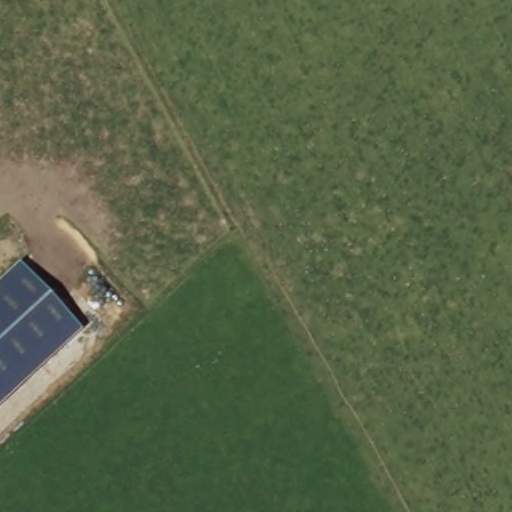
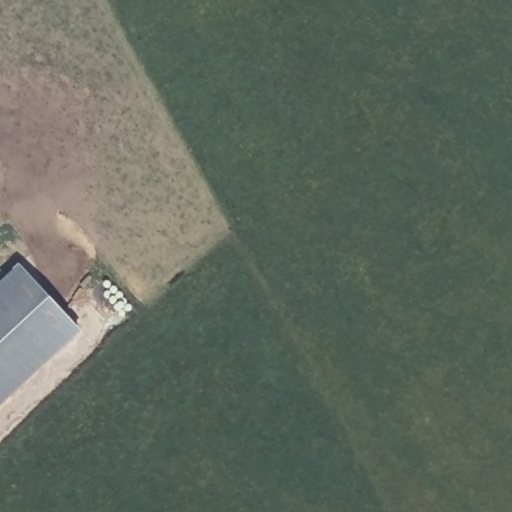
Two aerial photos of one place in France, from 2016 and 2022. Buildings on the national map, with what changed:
unchanged [(81,328),(0,403),(0,280),(19,262),(81,328)]

